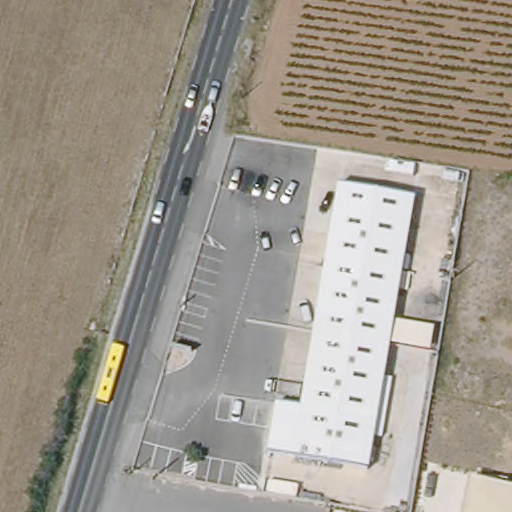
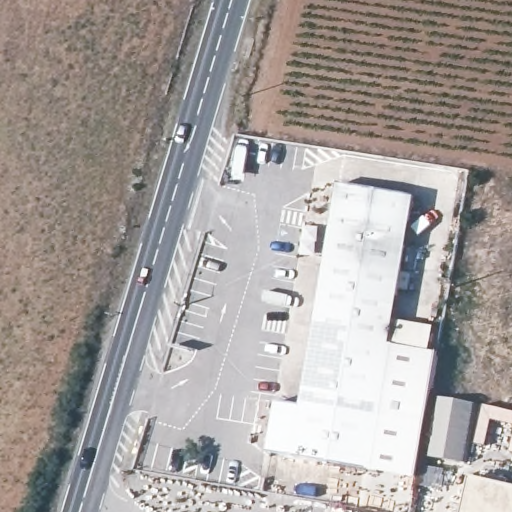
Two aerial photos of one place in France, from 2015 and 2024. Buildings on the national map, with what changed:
unchanged [(265,450),(275,399),(300,404),(342,182),(416,196),(364,469),(265,450)]
new [(435,327),(431,353),(438,354),(417,480),(364,469),(392,319),(435,327)]
new [(469,402),(460,462),(430,457),(439,397),(469,402)]
unchanged [(472,478),(512,488),(512,512),(464,512),(472,478)]

